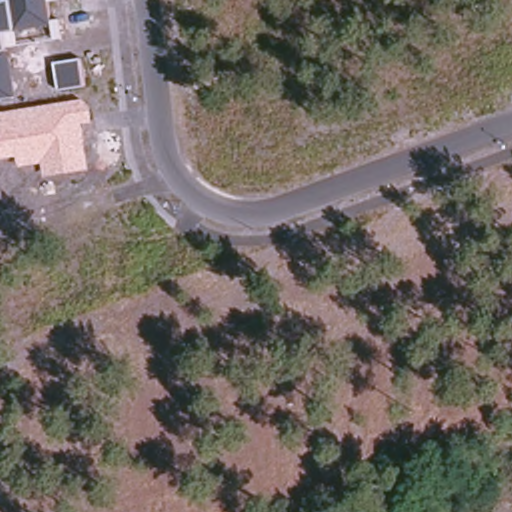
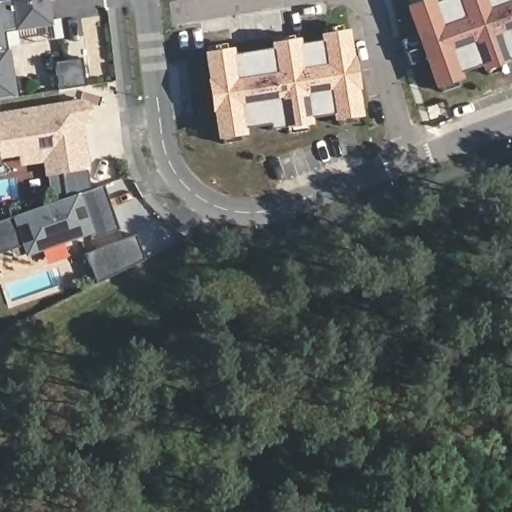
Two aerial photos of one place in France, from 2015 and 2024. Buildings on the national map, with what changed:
unchanged [(52,27),(16,33),(19,47),(7,49),(16,95),(0,98),(0,1),(4,0),(58,0),(48,1),(52,27)]
new [(481,71),(479,65),(459,72),(461,77),(433,88),(404,6),(419,0),(434,0),(435,3),(443,0),(512,0),(512,60),(481,71)]
new [(331,120),(330,115),(310,118),(311,123),(268,130),(267,125),(244,128),(245,134),(215,139),(203,52),(232,47),(233,54),(270,48),(269,42),(298,37),(299,44),(319,41),(318,35),(348,30),(362,115),(331,120)]
new [(81,57),(85,85),(58,90),(53,62),(81,57)]
unchanged [(82,123),(89,170),(44,177),(41,163),(18,167),(16,156),(0,159),(0,113),(84,101),(89,105),(91,122),(82,123)]
new [(90,233),(24,257),(19,246),(0,254),(0,222),(104,184),(120,229),(92,238),(90,233)]
new [(96,284),(86,253),(136,235),(145,259),(96,284)]

